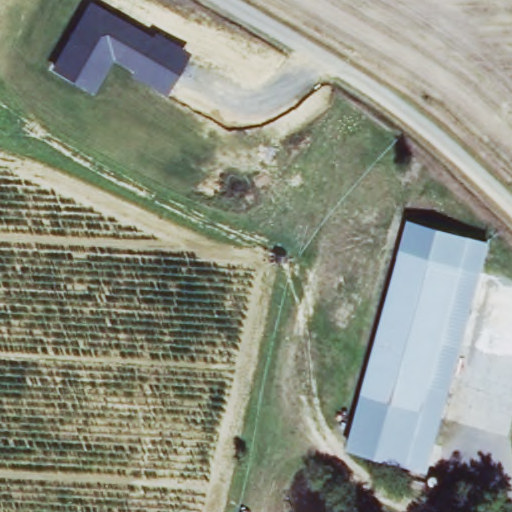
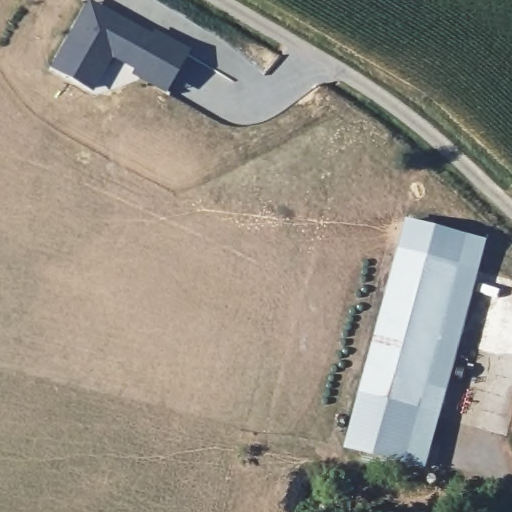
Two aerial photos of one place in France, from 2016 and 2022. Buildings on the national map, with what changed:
unchanged [(50,69),(90,0),(152,35),(154,32),(189,51),(165,96),(131,78),(134,73),(113,60),(94,93),(50,69)]
unchanged [(407,215),(492,238),(431,469),(347,447),(407,215)]

